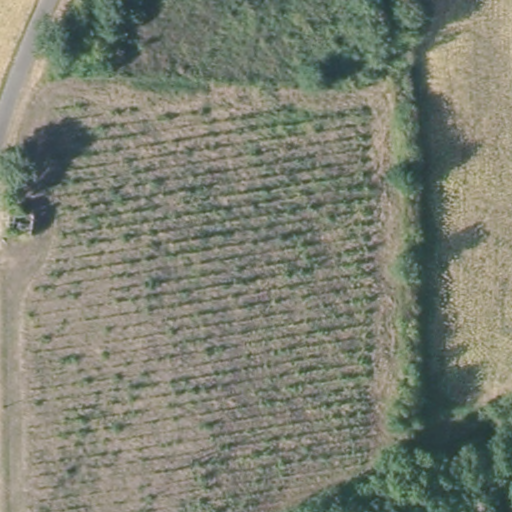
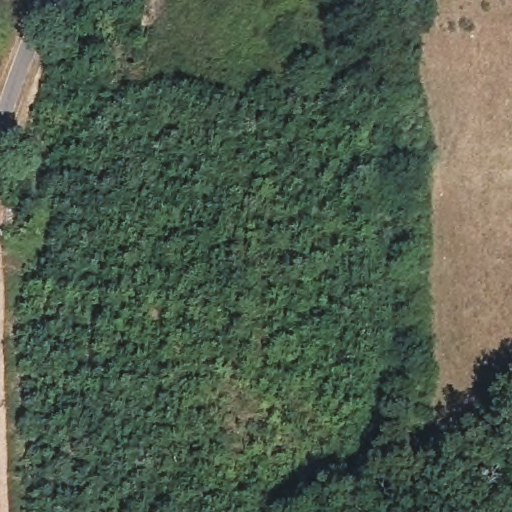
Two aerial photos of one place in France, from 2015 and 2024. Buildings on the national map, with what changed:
unchanged [(31,232),(7,229),(14,180),(36,182),(31,232)]

